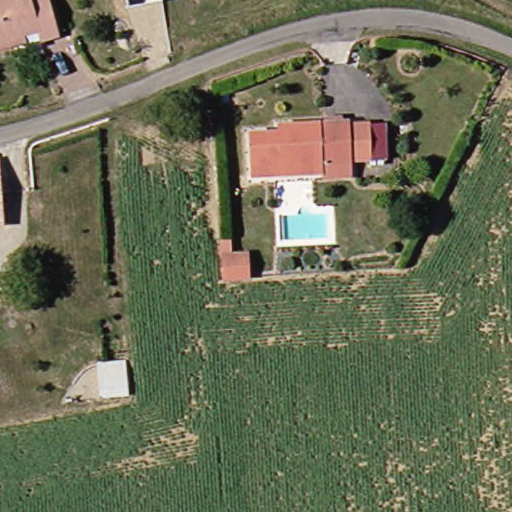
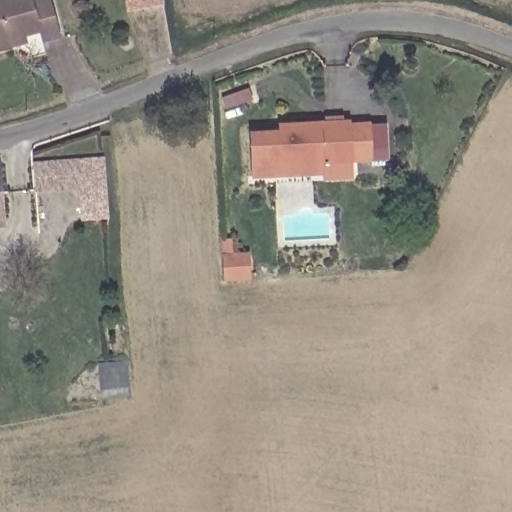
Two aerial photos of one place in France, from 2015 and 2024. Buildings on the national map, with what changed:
unchanged [(0,52),(0,0),(28,0),(28,4),(42,0),(52,44),(36,48),(34,36),(20,39),(22,48),(0,52)]
unchanged [(123,0),(160,0),(161,6),(125,14),(123,0)]
unchanged [(327,177),(326,167),(289,170),(256,173),(252,130),(280,128),(280,122),(351,117),(351,120),(372,119),(373,156),(353,158),(354,174),(327,177)]
new [(109,221),(81,221),(80,192),(36,192),(34,158),(107,157),(109,221)]
unchanged [(235,238),(236,257),(248,256),(250,278),(237,279),(227,279),(225,239),(228,239),(235,238)]

